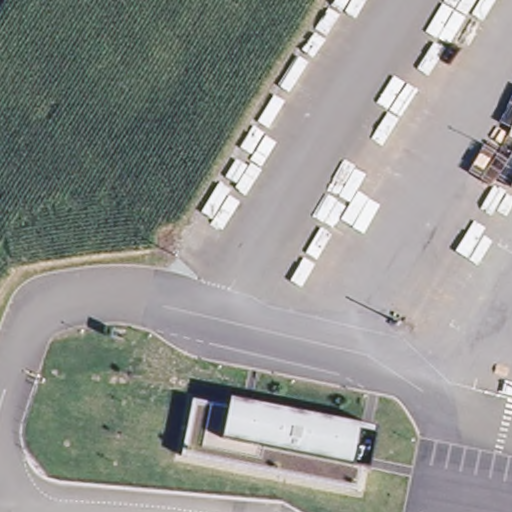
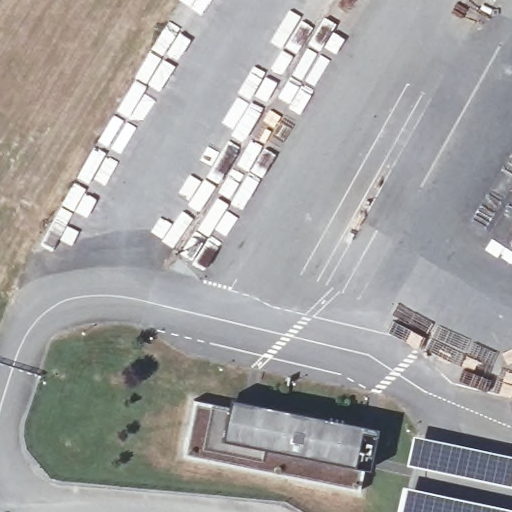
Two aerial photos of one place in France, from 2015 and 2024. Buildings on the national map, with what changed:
unchanged [(366,432),(360,463),(368,464),(363,489),(187,454),(198,398),(366,432)]
new [(512,455),(512,484),(511,488),(438,477),(439,474),(405,465),(412,434),(512,455)]
new [(512,508),(512,512),(398,512),(403,485),(512,508)]

